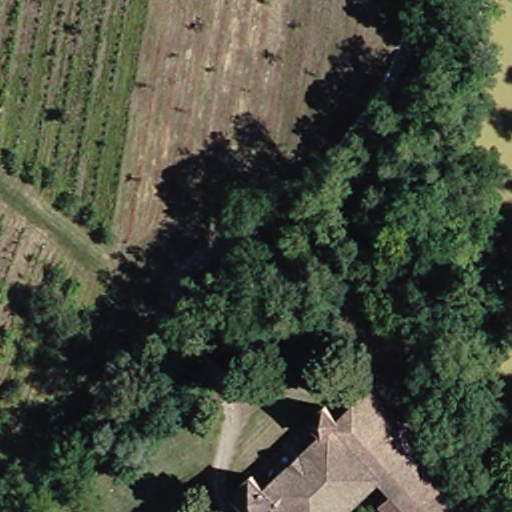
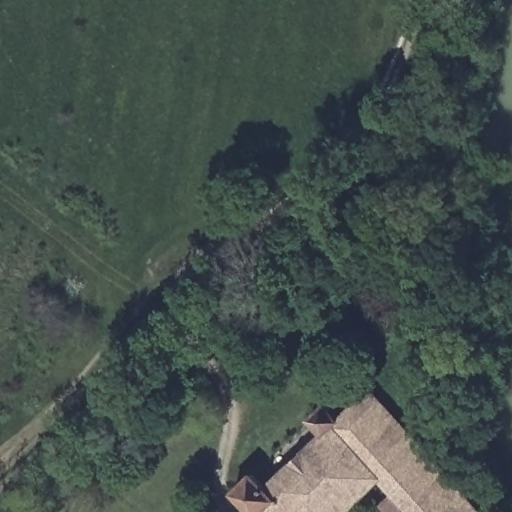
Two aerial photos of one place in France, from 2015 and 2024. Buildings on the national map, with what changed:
unchanged [(254,466),(264,476),(320,427),(310,415),(327,402),(338,412),(369,386),(474,504),(466,512),(415,512),(398,491),(384,474),(342,512),(254,512),(253,510),(230,486),(254,466)]
unchanged [(392,512),(384,503),(398,491),(415,512),(392,512)]
unchanged [(386,512),(377,512),(382,508),(386,512)]

